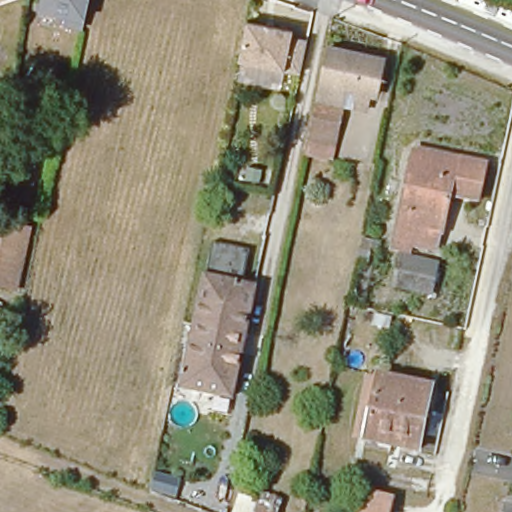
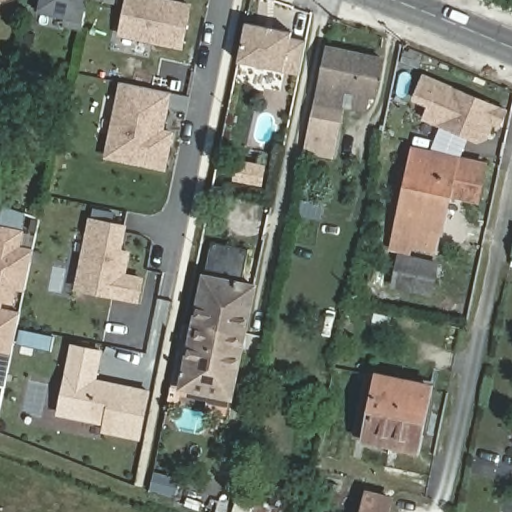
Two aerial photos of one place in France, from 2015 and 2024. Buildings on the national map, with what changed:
unchanged [(33,16),(37,0),(78,0),(73,26),(33,16)]
new [(157,0),(189,6),(181,48),(119,35),(126,0),(157,0)]
unchanged [(304,67),(303,76),(287,73),(238,63),(243,40),(246,23),(295,33),(294,38),(310,41),(304,67)]
unchanged [(345,91),(334,144),(310,139),(318,100),(328,49),(382,60),(375,97),(368,96),(345,91)]
new [(423,76),(505,111),(498,126),(492,123),(485,139),(476,142),(423,119),(428,106),(413,99),(423,76)]
new [(121,84),(171,94),(164,133),(171,134),(165,169),(107,158),(121,84)]
unchanged [(439,232),(435,250),(410,245),(408,252),(394,248),(415,151),(485,165),(480,190),(477,201),(449,195),(440,232),(439,232)]
new [(89,220),(122,227),(117,252),(127,253),(122,275),(140,279),(136,301),(75,289),(89,220)]
demolished [(14,267),(0,264),(0,222),(22,228),(14,267)]
new [(0,349),(0,227),(22,232),(19,248),(33,250),(12,352),(0,349)]
unchanged [(195,331),(205,283),(212,247),(249,255),(245,278),(256,280),(254,293),(244,341),(231,403),(182,392),(195,331)]
unchanged [(431,294),(394,286),(400,256),(437,264),(431,294)]
new [(100,433),(102,426),(55,417),(71,343),(103,350),(97,379),(151,390),(140,441),(100,433)]
unchanged [(422,450),(371,439),(361,437),(374,375),(384,377),(435,387),(422,450)]
unchanged [(213,482),(202,511),(177,502),(187,474),(213,482)]
unchanged [(240,499),(258,507),(261,493),(281,497),(277,512),(235,512),(240,499)]
unchanged [(393,499),(391,512),(365,512),(369,494),(393,499)]

